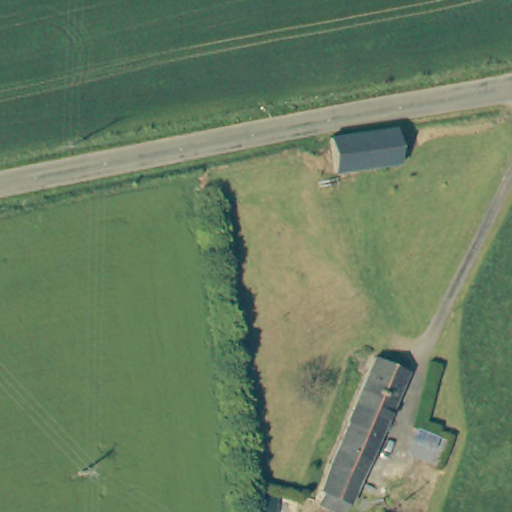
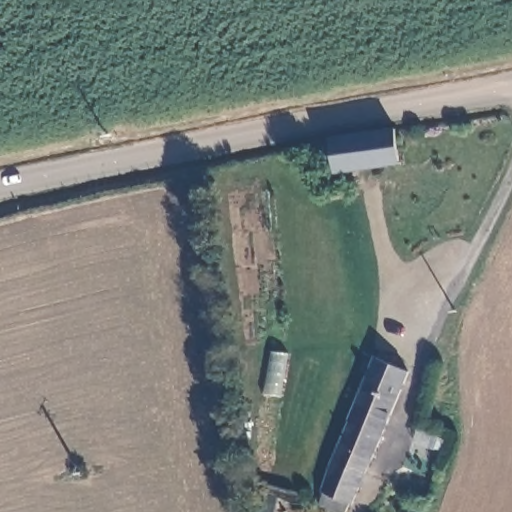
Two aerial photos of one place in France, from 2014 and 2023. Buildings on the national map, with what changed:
unchanged [(395,128),(395,132),(399,163),(334,173),(330,141),(330,138),(395,128)]
unchanged [(321,491),(331,462),(375,357),(407,372),(350,504),(345,512),(337,512),(319,504),(323,492),(321,491)]

